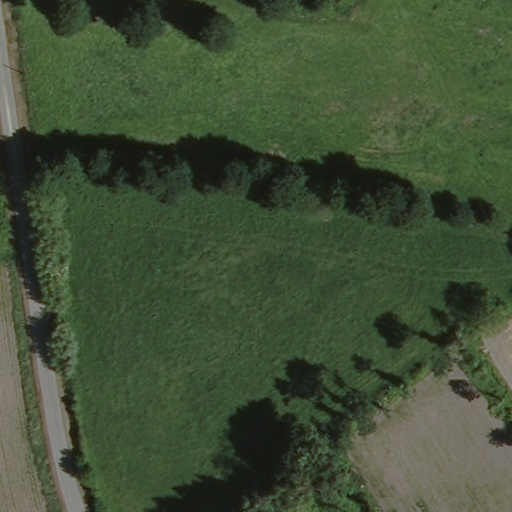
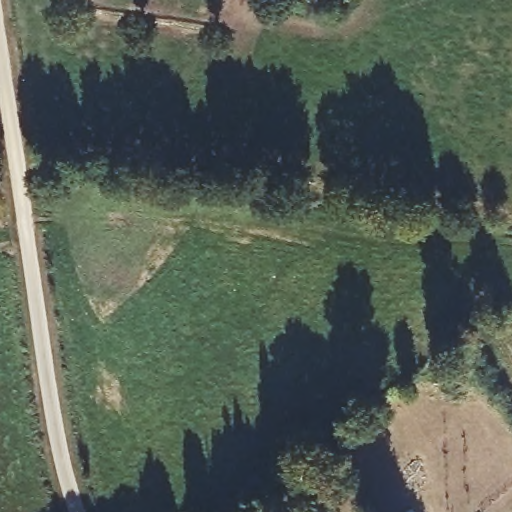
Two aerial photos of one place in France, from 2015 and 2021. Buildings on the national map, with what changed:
[]

